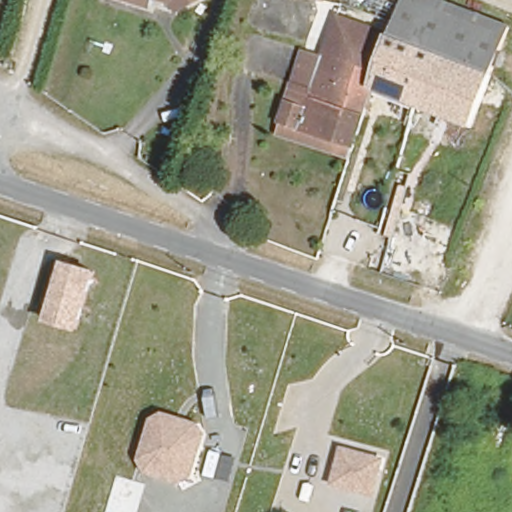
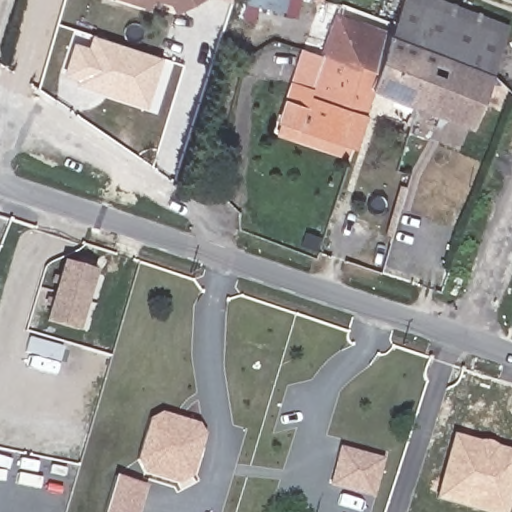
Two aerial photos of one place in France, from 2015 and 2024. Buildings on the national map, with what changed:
unchanged [(122,0),(121,1),(116,0),(122,0)]
unchanged [(143,0),(140,7),(121,1),(122,0),(143,0)]
unchanged [(163,1),(157,0),(192,0),(170,14),(163,1)]
unchanged [(441,0),(509,25),(491,74),(484,93),(470,126),(419,106),(372,87),(390,34),(394,21),(402,0),(441,0)]
unchanged [(275,132),(278,122),(291,83),(302,49),(321,56),(333,17),(390,34),(372,87),(352,145),(349,156),(275,132)]
new [(147,108),(74,85),(62,76),(73,41),(87,45),(95,36),(163,58),(147,108)]
unchanged [(76,329),(49,321),(65,263),(93,271),(76,329)]
unchanged [(196,477),(177,482),(146,474),(138,457),(152,416),(164,411),(202,423),(208,437),(196,477)]
new [(454,446),(456,439),(483,447),(486,446),(491,447),(495,450),(496,452),(512,457),(512,494),(506,512),(471,512),(436,500),(454,446)]
unchanged [(375,496),(328,486),(338,444),(385,456),(375,496)]
new [(117,478),(145,487),(139,512),(107,512),(117,478)]

